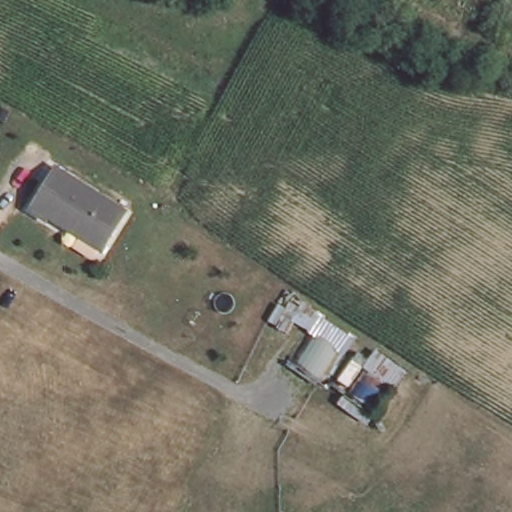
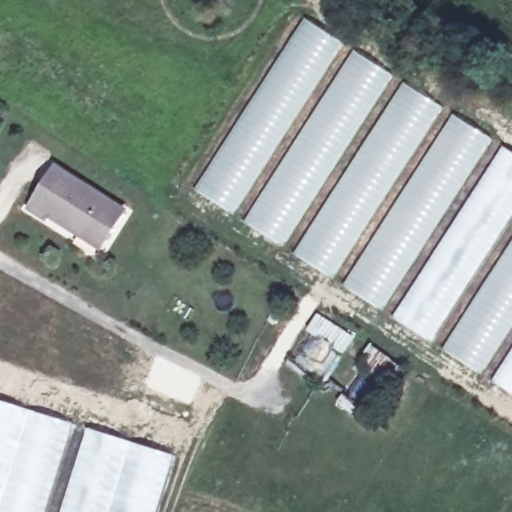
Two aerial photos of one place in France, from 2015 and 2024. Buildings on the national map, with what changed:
new [(305,18),(344,44),(234,216),(196,191),(305,18)]
new [(393,78),(281,247),(244,222),(354,52),(393,78)]
new [(402,83),(442,110),(332,280),(293,254),(402,83)]
new [(452,116),(490,140),(382,312),(344,287),(452,116)]
new [(431,344),(393,317),(501,148),(512,155),(512,216),(431,344)]
unchanged [(48,211),(46,215),(30,206),(56,165),(124,207),(104,239),(101,244),(84,234),(48,211)]
new [(443,349),(512,242),(512,328),(482,377),(443,349)]
unchanged [(344,352),(338,350),(321,378),(292,360),(309,332),(296,325),(286,335),(266,322),(284,287),(356,337),(344,352)]
unchanged [(354,348),(364,352),(374,345),(408,370),(394,387),(387,386),(363,420),(337,405),(345,390),(333,379),(354,348)]
new [(512,350),(512,395),(491,382),(512,350)]
new [(73,425),(45,512),(0,512),(0,401),(73,425)]
new [(86,427),(174,455),(156,512),(59,512),(86,427)]

